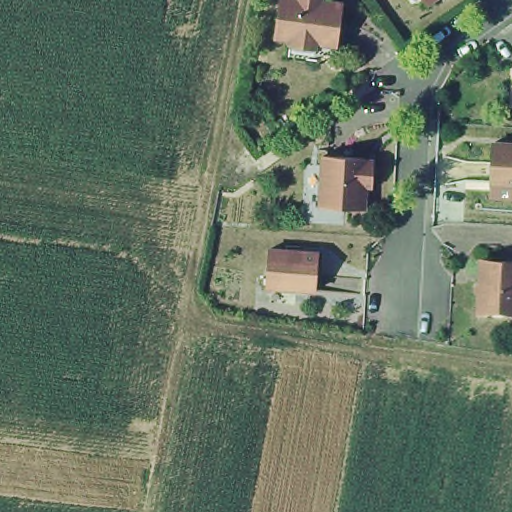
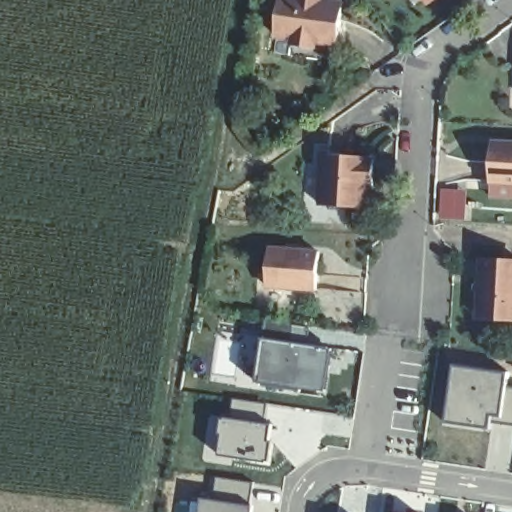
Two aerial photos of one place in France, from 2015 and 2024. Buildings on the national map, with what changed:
unchanged [(312,57),(285,53),(288,37),(273,35),(278,0),(317,0),(316,0),(338,3),(332,44),(329,43),(327,54),(312,52),(312,57)]
unchanged [(423,0),(428,0),(425,2),(423,0)]
unchanged [(486,143),(512,145),(512,183),(485,182),(486,143)]
unchanged [(361,186),(360,209),(315,206),(318,155),(363,158),(363,162),(368,162),(368,167),(367,186),(361,186)]
unchanged [(318,252),(316,290),(267,286),(270,248),(318,252)]
unchanged [(471,289),(471,283),(476,280),(478,261),(483,261),(512,263),(512,319),(475,317),(475,294),(471,289)]
new [(327,349),(321,392),(251,383),(257,339),(327,349)]
new [(491,422),(491,427),(447,422),(455,366),(508,373),(507,387),(512,388),(512,425),(491,422)]
new [(261,462),(211,456),(217,417),(228,418),(231,399),(268,404),(261,462)]
new [(247,512),(193,512),(195,499),(211,501),(215,477),(250,482),(247,512)]
new [(402,512),(390,512),(390,510),(402,512)]

